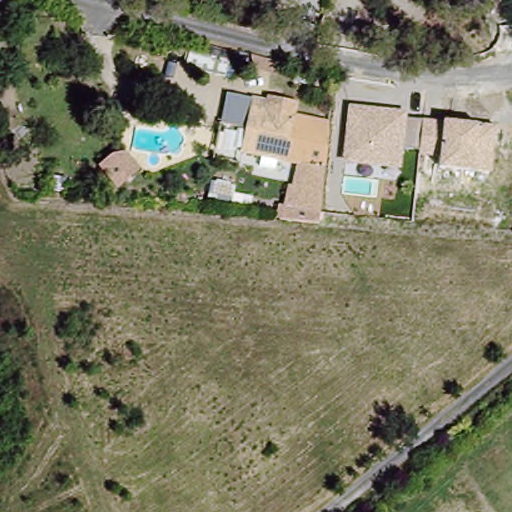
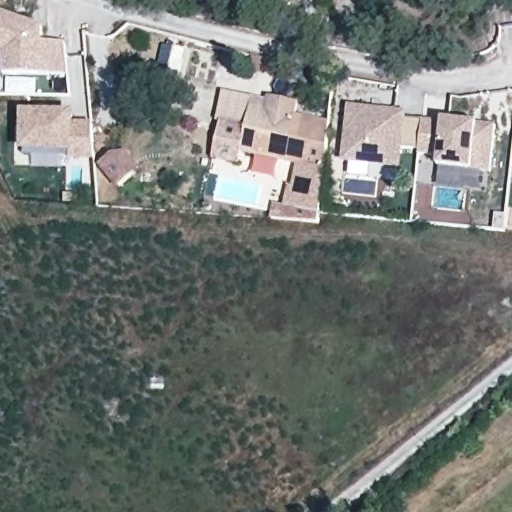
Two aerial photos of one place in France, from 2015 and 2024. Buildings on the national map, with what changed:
new [(41,27),(42,42),(46,43),(65,42),(67,74),(5,73),(5,54),(0,52),(0,12),(41,27)]
unchanged [(255,167),(256,152),(238,150),(243,102),(256,104),(289,106),(335,110),(329,212),(300,210),(302,157),(285,155),(283,170),(255,167)]
unchanged [(349,105),(407,111),(406,117),(442,121),(443,119),(476,122),(496,126),(492,170),(473,170),(438,165),(440,156),(418,155),(418,150),(402,149),(400,169),(342,160),(349,105)]
new [(22,112),(76,112),(76,121),(92,122),(95,160),(71,160),(72,154),(23,151),(22,112)]
new [(111,154),(126,151),(141,168),(116,187),(99,165),(111,154)]

